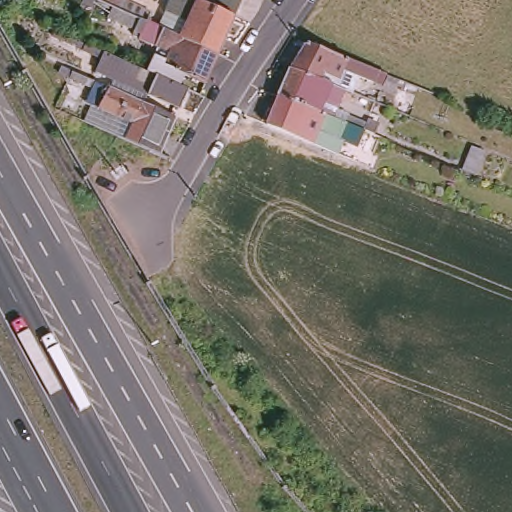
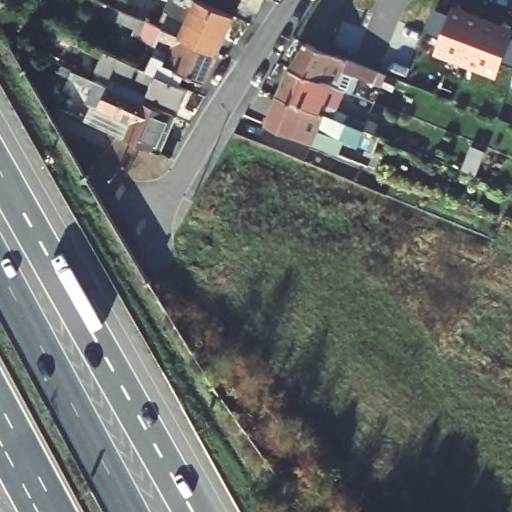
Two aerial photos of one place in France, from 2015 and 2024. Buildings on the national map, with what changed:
unchanged [(117,0),(120,1),(120,0),(125,0),(152,12),(149,20),(177,32),(184,36),(185,36),(222,53),(219,58),(207,83),(188,74),(182,86),(177,83),(162,76),(167,65),(172,52),(141,37),(144,33),(110,18),(107,24),(92,17),(100,0),(105,0),(108,1),(109,0),(117,0)]
unchanged [(182,0),(192,0),(189,6),(181,3),(182,0)]
unchanged [(237,18),(200,1),(197,0),(246,0),(240,11),(237,18)]
unchanged [(237,18),(222,53),(185,36),(184,36),(200,1),(237,18)]
new [(484,18),(467,61),(436,49),(452,6),(484,18)]
new [(484,18),(512,29),(512,37),(498,73),(467,61),(484,18)]
unchanged [(102,59),(79,48),(83,40),(79,38),(85,22),(106,32),(100,48),(106,50),(102,59)]
unchanged [(382,81),(377,78),(374,82),(349,72),(343,80),(338,78),(334,84),(329,83),(291,67),(307,41),(385,73),(382,81)]
unchanged [(106,71),(114,54),(162,76),(177,83),(182,86),(190,89),(182,108),(149,92),(145,100),(102,80),(106,71)]
unchanged [(324,96),(341,103),(335,117),(280,94),(291,67),(329,83),(324,96)]
unchanged [(145,100),(173,113),(185,119),(169,153),(132,136),(97,119),(102,105),(95,103),(102,90),(70,75),(74,68),(102,80),(145,100)]
unchanged [(355,125),(367,130),(360,145),(320,130),(315,144),(267,124),(280,94),(335,117),(355,125)]
unchanged [(483,150),(474,177),(457,172),(465,145),(483,150)]

